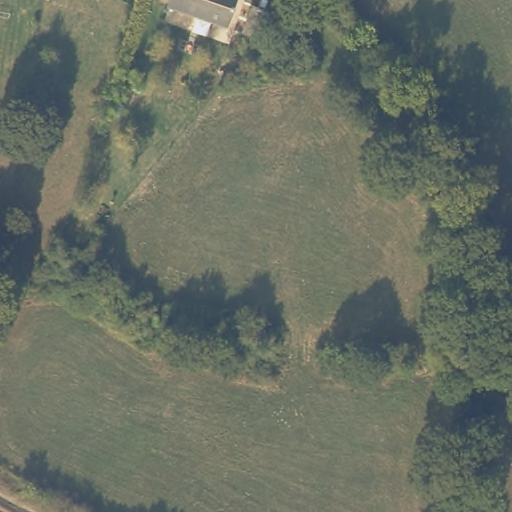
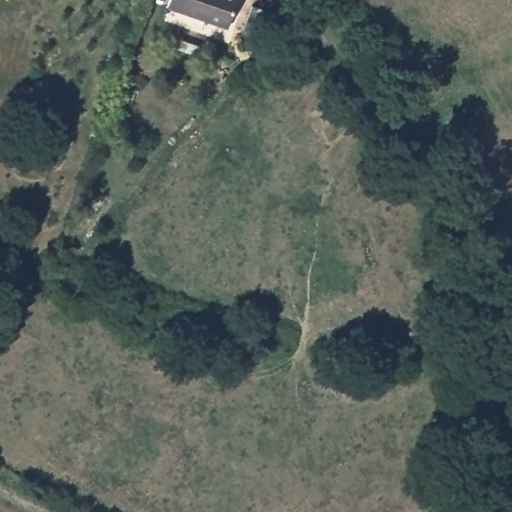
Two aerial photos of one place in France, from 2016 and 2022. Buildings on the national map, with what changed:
unchanged [(223,27),(161,3),(162,0),(234,0),(223,27)]
unchanged [(242,31),(252,2),(271,10),(262,36),(260,38),(242,31)]
unchanged [(309,61),(307,74),(285,71),(286,59),(309,61)]

